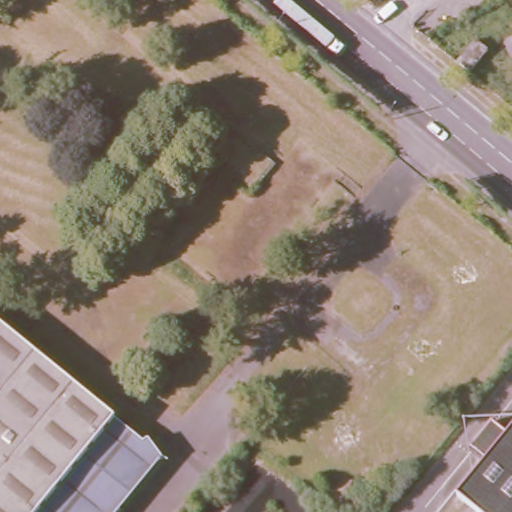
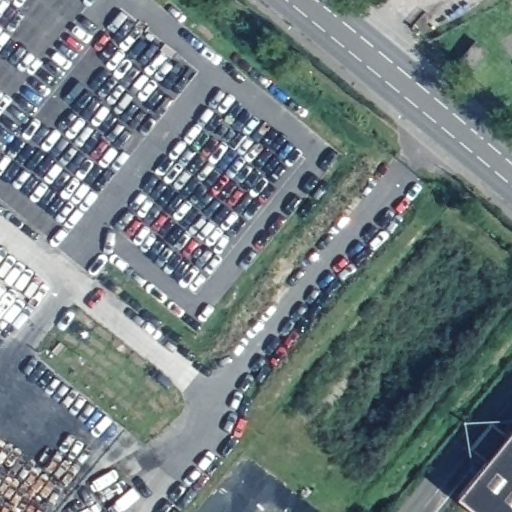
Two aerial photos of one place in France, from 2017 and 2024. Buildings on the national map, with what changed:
unchanged [(480,54),(467,71),(454,61),(468,44),(480,54)]
demolished [(142,435),(150,432),(159,448),(107,481),(118,500),(99,512),(0,512),(0,319),(142,435)]
unchanged [(488,458),(470,443),(492,420),(509,432),(512,429),(512,512),(479,512),(459,495),(488,458)]

